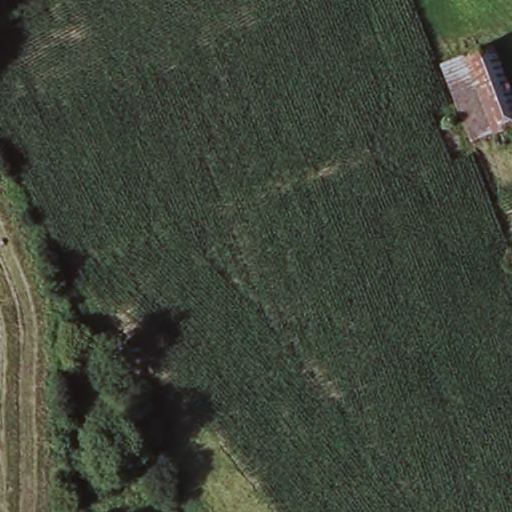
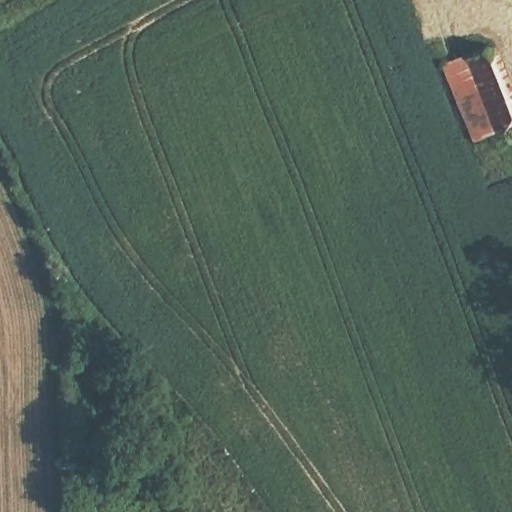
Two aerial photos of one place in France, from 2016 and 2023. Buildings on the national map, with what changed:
unchanged [(471,64),(498,52),(512,89),(512,135),(500,140),(498,137),(476,146),(447,69),(468,61),(471,64)]

